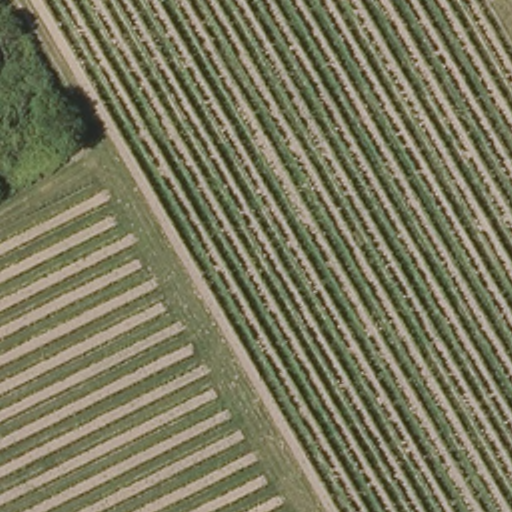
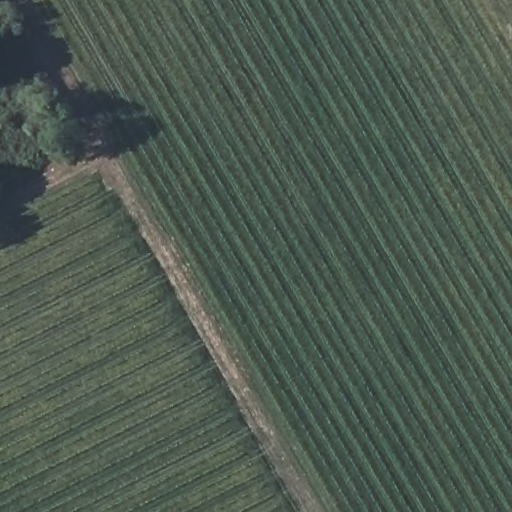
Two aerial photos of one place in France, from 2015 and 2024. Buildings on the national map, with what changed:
[]

